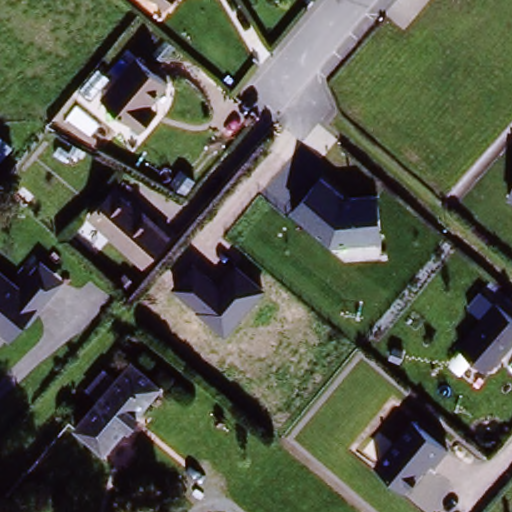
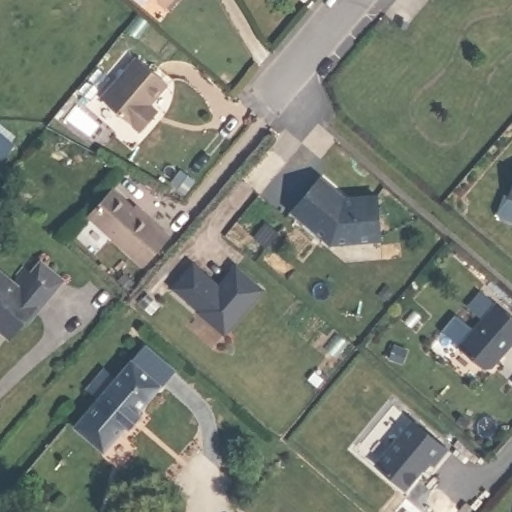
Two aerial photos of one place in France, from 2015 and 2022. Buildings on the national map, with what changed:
unchanged [(163,9),(152,0),(170,0),(163,9)]
unchanged [(136,57),(165,85),(148,104),(157,114),(136,133),(98,98),(136,57)]
unchanged [(0,155),(0,142),(7,147),(0,155)]
unchanged [(347,201),(379,198),(383,244),(330,248),(289,215),(320,178),(347,201)]
unchanged [(163,235),(143,260),(88,214),(109,190),(163,235)]
unchanged [(21,327),(10,340),(0,332),(0,276),(9,283),(20,268),(29,275),(38,263),(62,282),(52,294),(27,326),(21,327)]
unchanged [(228,336),(174,290),(197,264),(222,282),(235,268),(265,288),(228,336)]
unchanged [(494,371),(486,371),(457,348),(494,305),(512,320),(512,350),(494,371)]
unchanged [(125,358),(156,384),(107,447),(74,421),(125,358)]
unchanged [(413,420),(446,448),(434,465),(431,462),(408,490),(377,463),(413,420)]

